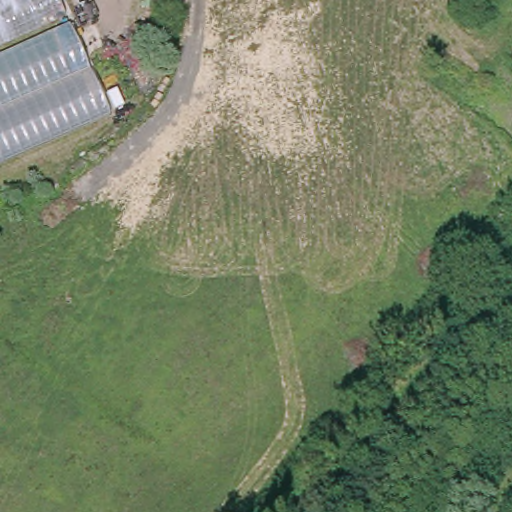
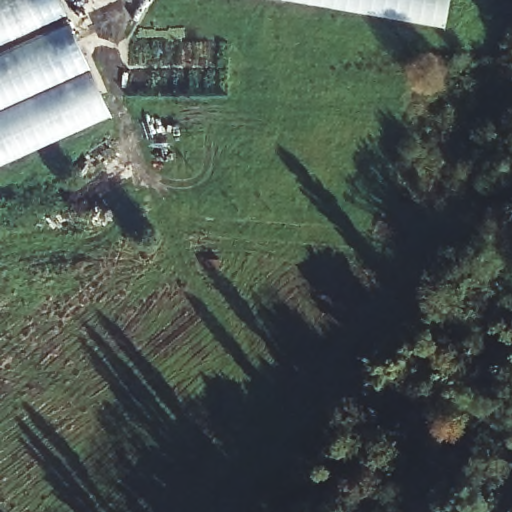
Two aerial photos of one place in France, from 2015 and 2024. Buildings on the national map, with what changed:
unchanged [(110,114),(0,165),(0,0),(57,0),(110,114)]
new [(445,21),(312,0),(448,0),(445,21)]

